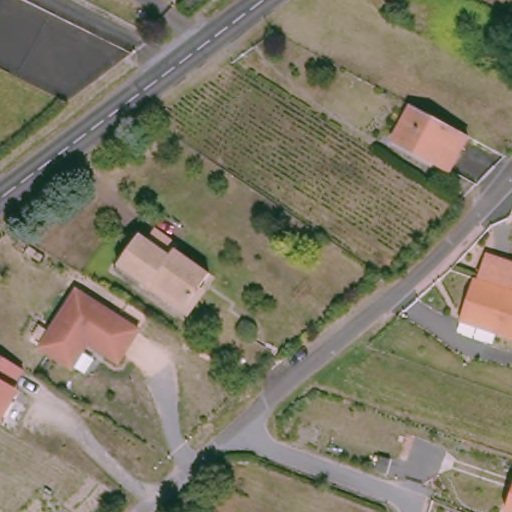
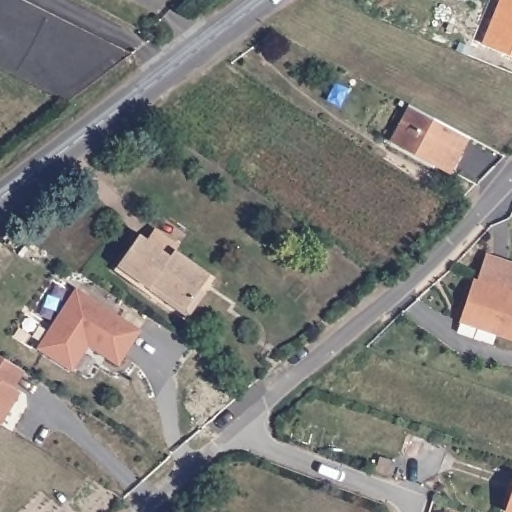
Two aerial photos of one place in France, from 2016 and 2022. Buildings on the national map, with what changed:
new [(498,0),(512,0),(512,55),(480,42),(498,0)]
unchanged [(450,166),(416,147),(418,143),(397,131),(414,101),(470,132),(450,166)]
unchanged [(152,291),(120,267),(143,236),(158,247),(166,237),(182,250),(180,252),(212,277),(190,307),(184,315),(152,291)]
unchanged [(466,306),(476,277),(512,290),(512,337),(498,332),(462,320),(464,312),(466,306)]
unchanged [(73,289),(135,332),(112,363),(80,341),(77,346),(78,351),(62,372),(30,350),(73,289)]
unchanged [(220,363),(240,335),(264,349),(258,359),(267,365),(247,381),(220,363)]
unchanged [(13,402),(0,421),(0,357),(6,361),(23,372),(12,390),(14,391),(18,393),(13,402)]
unchanged [(512,497),(512,512),(507,510),(512,497)]

